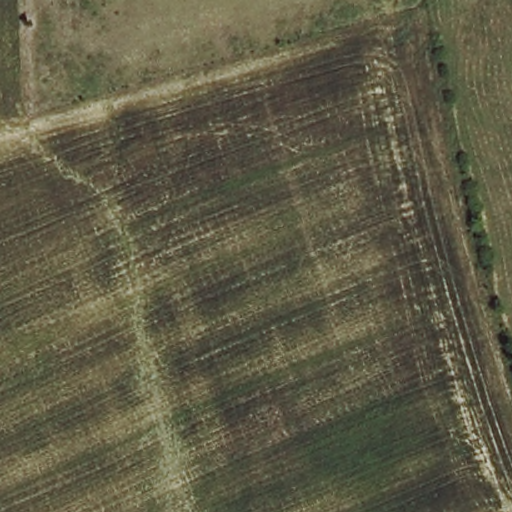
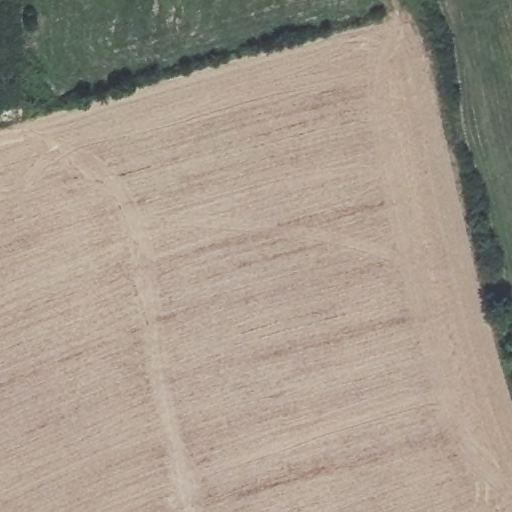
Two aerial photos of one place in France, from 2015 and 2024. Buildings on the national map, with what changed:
[]

